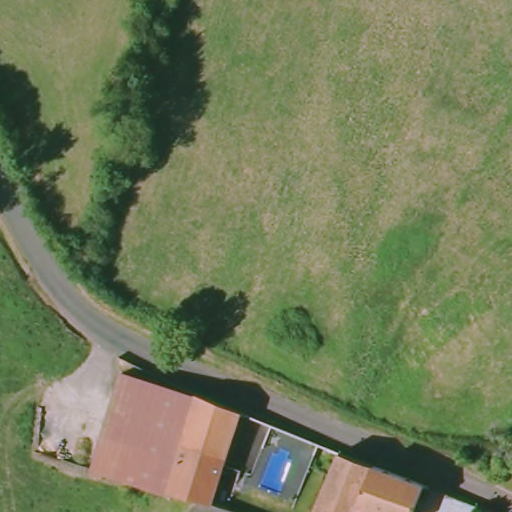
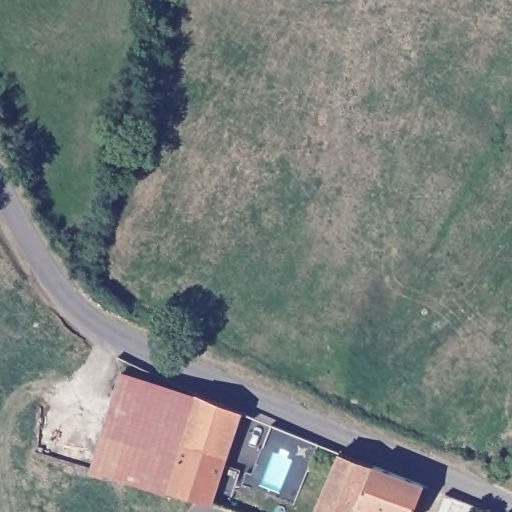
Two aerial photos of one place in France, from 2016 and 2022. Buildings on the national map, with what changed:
unchanged [(182,449),(112,422),(128,367),(199,387),(182,449)]
unchanged [(171,484),(182,449),(199,387),(242,407),(224,460),(243,466),(228,506),(197,495),(171,484)]
unchanged [(101,463),(112,422),(182,449),(171,484),(101,463)]
unchanged [(318,464),(324,449),(339,454),(423,487),(414,512),(368,512),(358,509),(356,512),(312,512),(319,496),(331,470),(318,464)]
unchanged [(472,507),(468,512),(431,512),(442,496),(472,507)]

